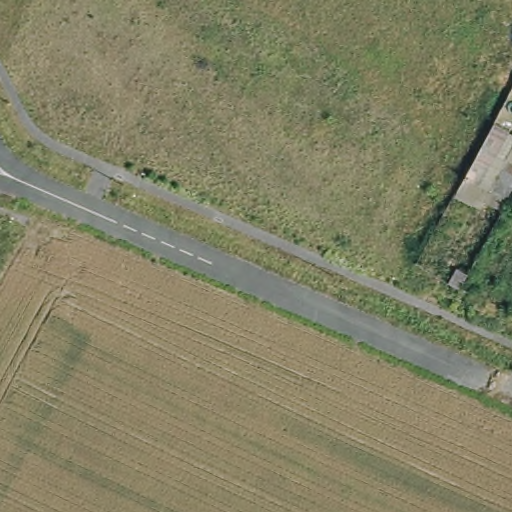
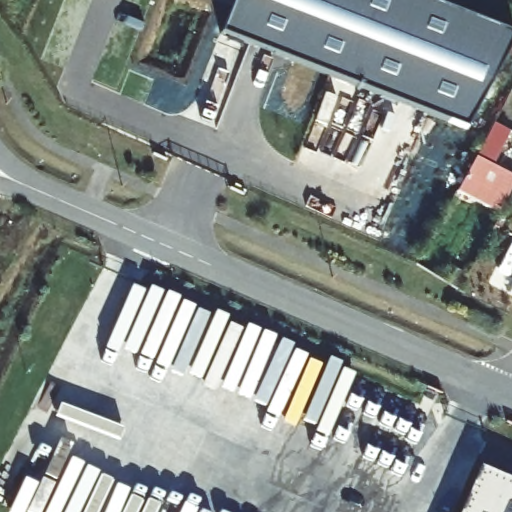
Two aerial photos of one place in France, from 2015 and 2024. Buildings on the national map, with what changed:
new [(512,34),(512,46),(467,129),(223,34),(234,0),(425,0),(512,34)]
new [(510,132),(493,166),(512,177),(512,188),(499,212),(457,191),(491,125),(510,132)]
demolished [(512,136),(512,140),(501,161),(486,189),(479,203),(460,195),(496,128),(512,136)]
demolished [(495,194),(510,165),(512,167),(512,198),(510,202),(495,194)]
new [(460,512),(480,467),(512,482),(512,512),(460,512)]

